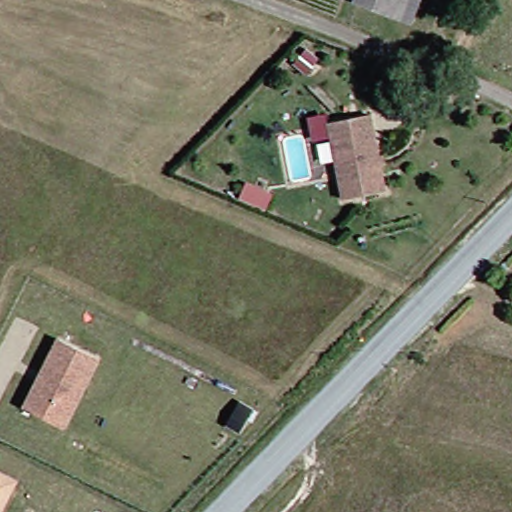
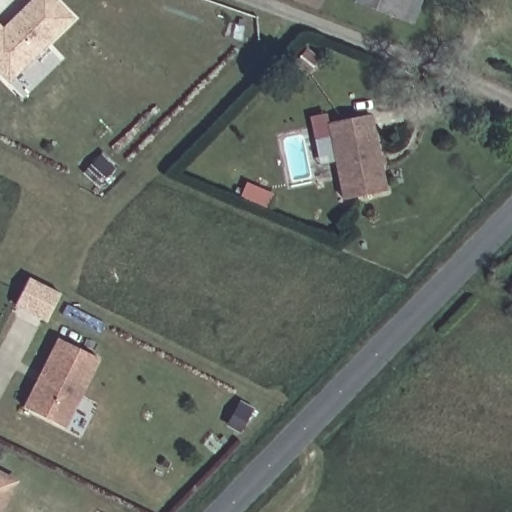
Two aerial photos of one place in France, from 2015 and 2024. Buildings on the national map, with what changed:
new [(10,24),(17,17),(35,0),(57,0),(75,18),(11,81),(0,70),(0,24),(5,29),(10,24)]
unchanged [(418,18),(365,0),(425,0),(418,18)]
unchanged [(347,196),(335,120),(377,113),(391,190),(347,196)]
new [(250,182),(276,194),(269,210),(242,199),(250,182)]
new [(32,278),(64,294),(50,321),(19,305),(32,278)]
unchanged [(68,428),(27,414),(40,382),(52,348),(55,340),(96,355),(92,364),(75,410),(68,428)]
unchanged [(13,479),(1,512),(0,512),(0,475),(13,479)]

